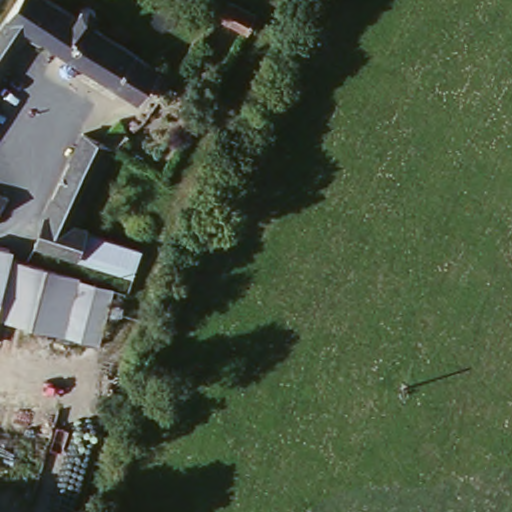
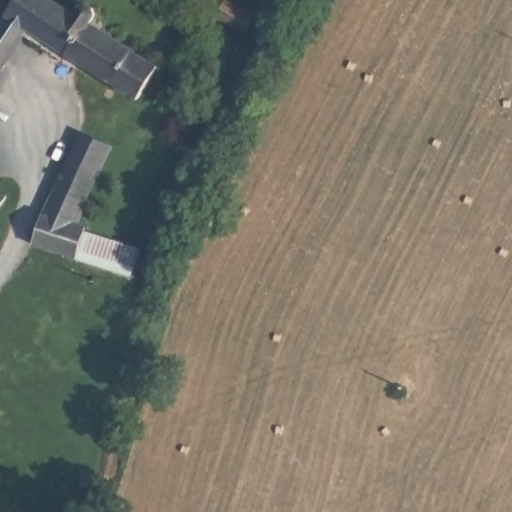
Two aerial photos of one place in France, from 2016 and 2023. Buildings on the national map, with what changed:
unchanged [(70,10),(78,0),(79,0),(90,0),(90,10),(85,20),(159,66),(134,104),(25,37),(0,77),(0,19),(11,0),(54,0),(70,10)]
unchanged [(258,14),(269,20),(265,29),(255,24),(250,30),(220,14),(230,0),(253,0),(263,5),(258,14)]
unchanged [(45,252),(47,227),(47,224),(81,136),(115,148),(95,200),(91,229),(89,237),(95,240),(91,255),(102,257),(100,265),(45,252)]
unchanged [(0,214),(0,193),(10,195),(0,214)]
unchanged [(140,249),(132,275),(100,265),(102,257),(91,255),(95,240),(89,237),(90,230),(140,249)]
demolished [(0,260),(0,245),(13,248),(9,264),(0,293),(0,260)]
demolished [(90,288),(121,298),(107,348),(2,322),(18,268),(20,261),(37,265),(91,280),(90,288)]

